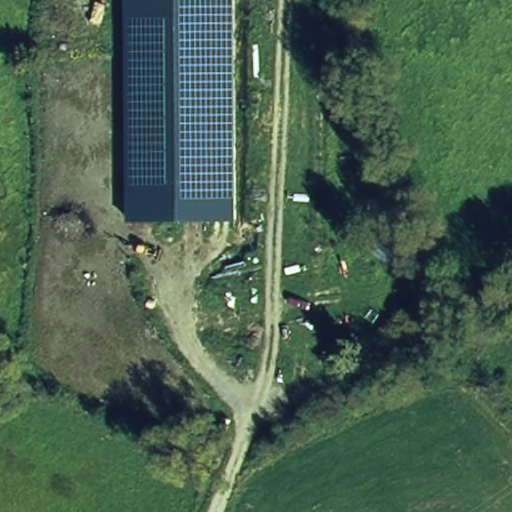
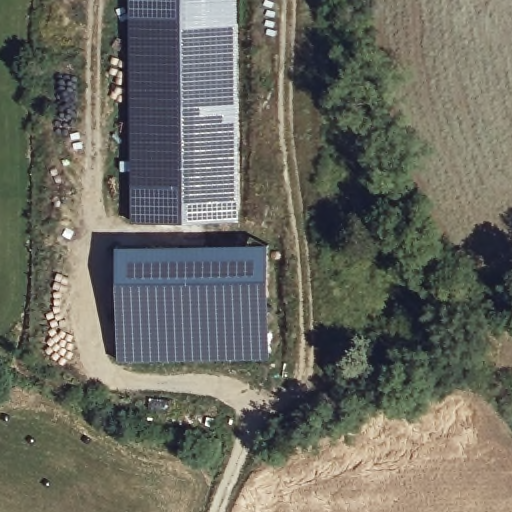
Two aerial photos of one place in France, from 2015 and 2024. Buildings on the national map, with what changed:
unchanged [(229,225),(124,220),(136,0),(241,0),(230,200),(229,220),(229,225)]
new [(269,357),(121,362),(120,246),(269,245),(269,357)]

